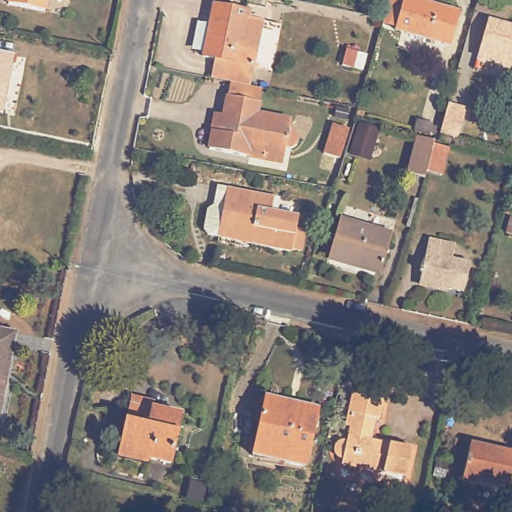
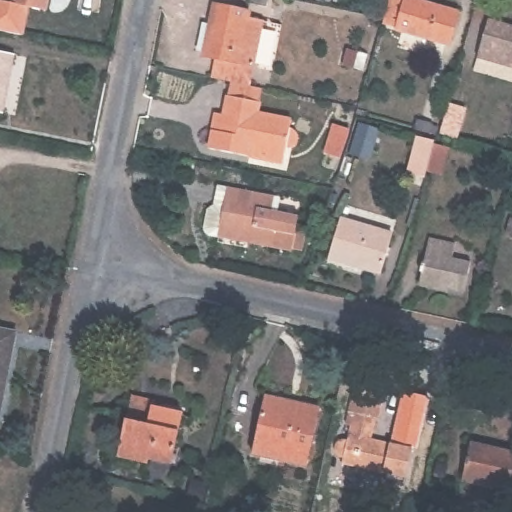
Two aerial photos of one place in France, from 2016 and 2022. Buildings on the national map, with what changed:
unchanged [(7,0),(44,0),(42,12),(6,4),(7,0)]
unchanged [(405,29),(390,24),(391,19),(397,0),(427,0),(466,11),(456,45),(404,30),(405,29)]
unchanged [(256,24),(246,69),(232,66),(231,64),(196,57),(209,4),(244,12),(242,20),(256,24)]
unchanged [(473,57),(484,21),(512,29),(512,68),(494,63),(473,57)]
unchanged [(341,69),(345,52),(356,54),(352,71),(341,69)]
unchanged [(7,88),(0,86),(0,53),(13,56),(7,88)]
unchanged [(256,160),(202,149),(206,130),(210,113),(218,114),(222,97),(255,104),(252,115),(285,123),(285,130),(287,131),(288,132),(290,134),(292,136),(292,139),(292,140),(291,144),(290,145),(289,148),(287,149),(285,149),(280,149),(278,158),(276,165),(256,160)]
unchanged [(466,110),(457,139),(440,135),(447,107),(448,104),(466,110)]
unchanged [(321,154),(330,125),(345,130),(336,159),(321,154)]
unchanged [(422,183),(406,178),(417,139),(433,143),(422,183)]
unchanged [(215,235),(211,229),(215,210),(221,205),(225,186),(236,189),(281,199),(278,213),(305,219),(297,254),(254,244),(225,238),(215,235)]
unchanged [(377,273),(326,258),(337,219),(388,235),(377,273)]
unchanged [(507,219),(512,221),(512,235),(504,233),(507,219)]
unchanged [(450,258),(467,260),(462,293),(419,284),(420,272),(419,270),(420,263),(422,263),(426,238),(452,242),(450,258)]
unchanged [(14,333),(0,405),(0,330),(14,333)]
unchanged [(407,449),(400,484),(383,481),(385,474),(340,464),(341,459),(336,456),(334,453),(333,452),(333,448),(333,445),(335,443),(337,441),(340,440),(343,439),(345,439),(348,426),(344,424),(352,391),(364,394),(365,391),(377,394),(377,397),(382,398),(378,419),(373,419),(369,439),(407,449)]
unchanged [(253,444),(265,396),(316,409),(303,466),(282,461),(251,454),(253,444)]
unchanged [(174,459),(150,454),(150,459),(121,453),(129,418),(132,399),(154,403),(154,404),(183,409),(174,459)]
unchanged [(470,443),(512,453),(512,478),(509,491),(461,479),(470,443)]

